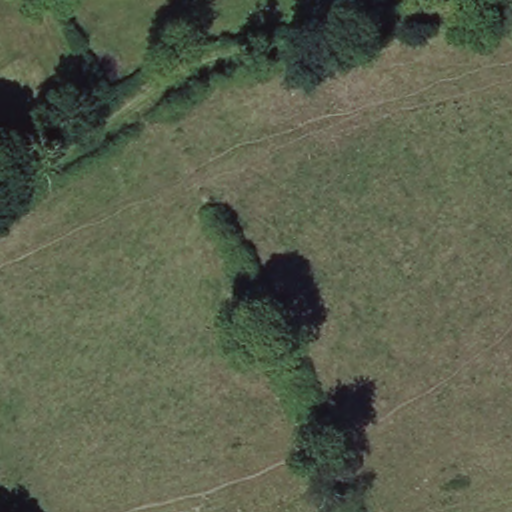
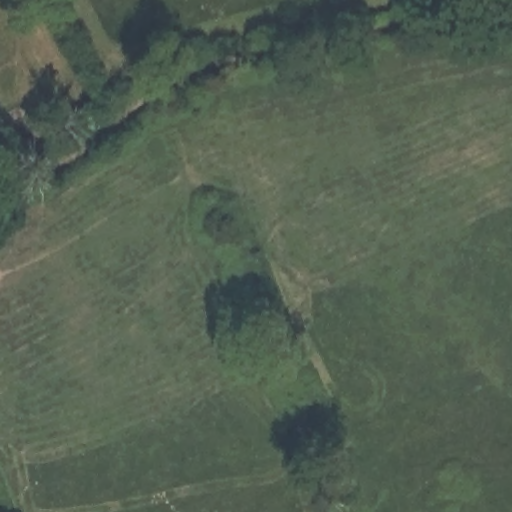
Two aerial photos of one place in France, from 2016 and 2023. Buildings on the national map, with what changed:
[]

